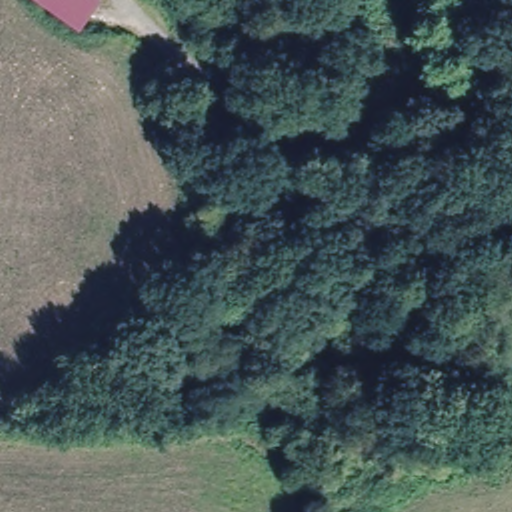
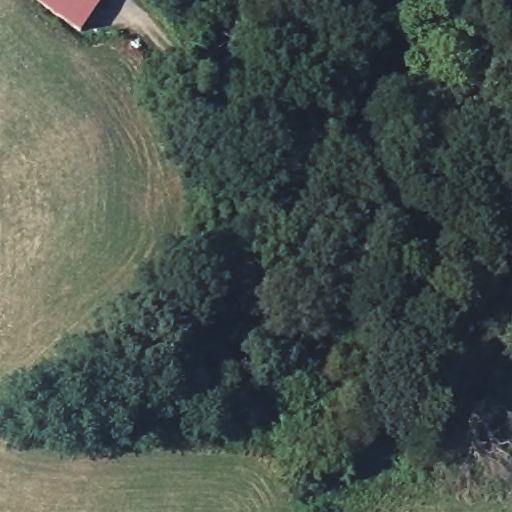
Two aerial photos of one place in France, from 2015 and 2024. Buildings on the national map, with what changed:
unchanged [(80,28),(38,0),(98,0),(80,28)]

